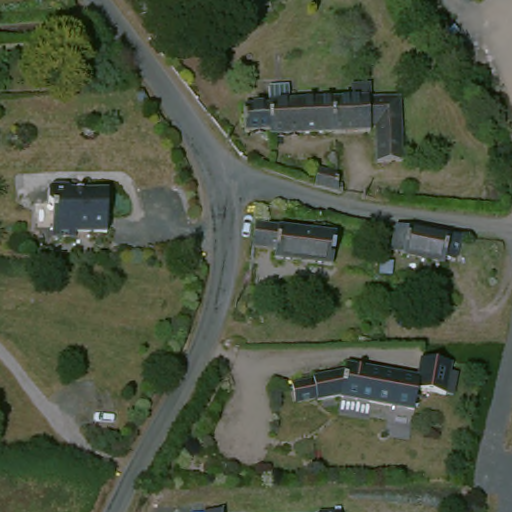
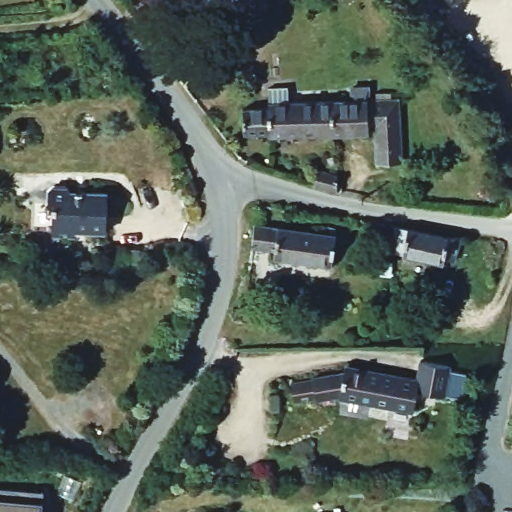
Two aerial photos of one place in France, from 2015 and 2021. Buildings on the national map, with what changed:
unchanged [(358,128),(240,137),(237,109),(264,105),(263,92),(284,89),(286,104),(355,99),(354,89),(373,87),(374,97),(399,95),(404,153),(369,155),(366,118),(356,119),(358,128)]
unchanged [(339,193),(311,191),(311,173),(336,174),(339,193)]
unchanged [(86,190),(112,192),(109,232),(78,229),(77,234),(54,232),(56,205),(51,199),(52,187),(58,182),(70,183),(74,189),(86,190)]
unchanged [(284,262),(284,253),(244,252),(248,228),(324,228),(325,221),(333,220),(333,228),(332,262),(284,262)]
unchanged [(449,231),(441,257),(434,257),(434,264),(391,262),(391,244),(383,244),(384,227),(449,231)]
unchanged [(392,275),(390,289),(378,288),(379,274),(392,275)]
unchanged [(418,373),(420,353),(451,356),(447,387),(419,384),(417,404),(342,395),(319,400),(319,398),(296,403),(292,384),(314,379),(313,377),(345,369),(346,364),(418,373)]
new [(19,491),(39,491),(39,501),(39,512),(0,512),(0,491),(19,491)]
unchanged [(206,507),(224,507),(224,512),(206,512),(206,507)]
unchanged [(321,511),(344,511),(344,512),(321,512),(321,511)]

